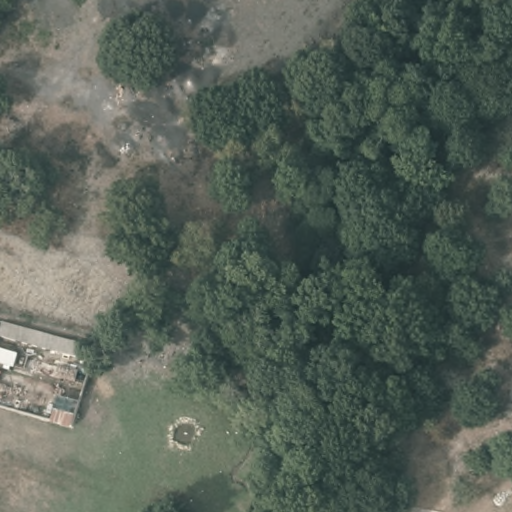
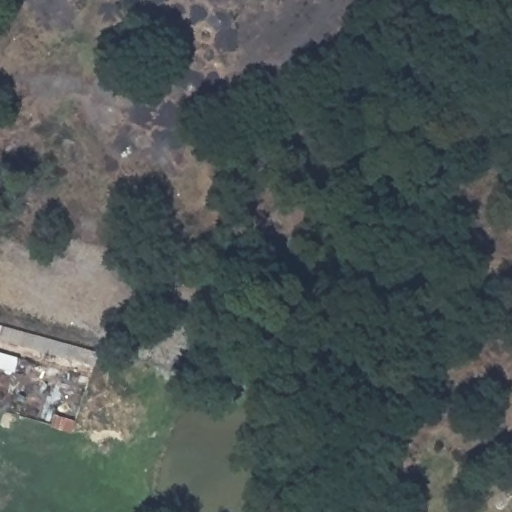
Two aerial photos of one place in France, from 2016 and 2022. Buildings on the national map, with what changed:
[]

